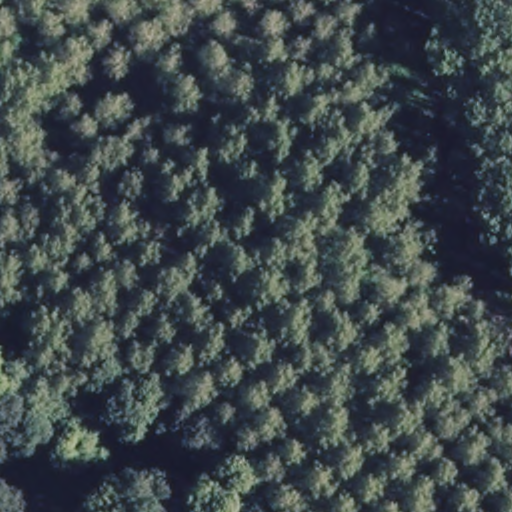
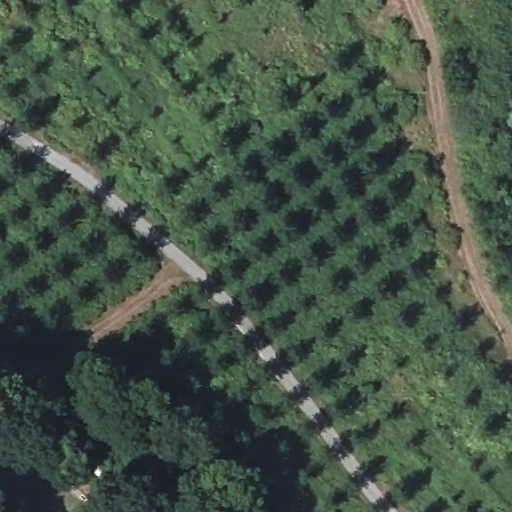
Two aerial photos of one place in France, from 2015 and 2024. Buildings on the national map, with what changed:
unchanged [(90,467),(102,449),(116,457),(101,475),(90,467)]
unchanged [(43,512),(16,512),(32,494),(47,508),(43,512)]

